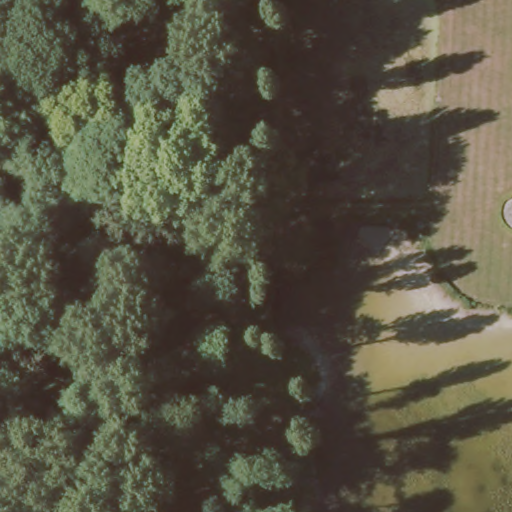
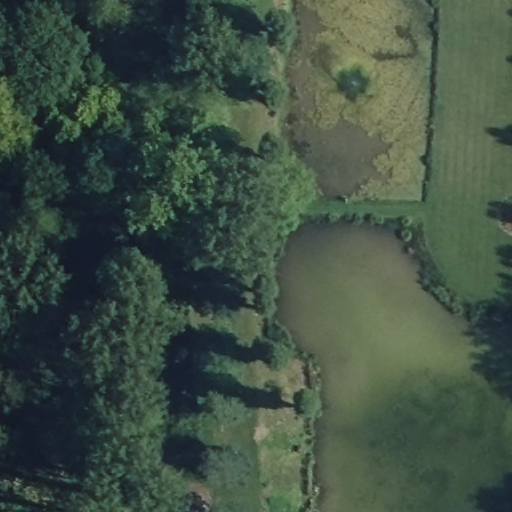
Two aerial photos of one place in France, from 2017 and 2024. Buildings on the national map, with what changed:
[]

